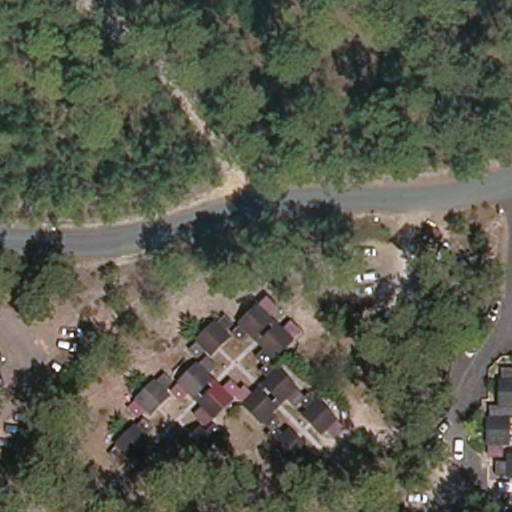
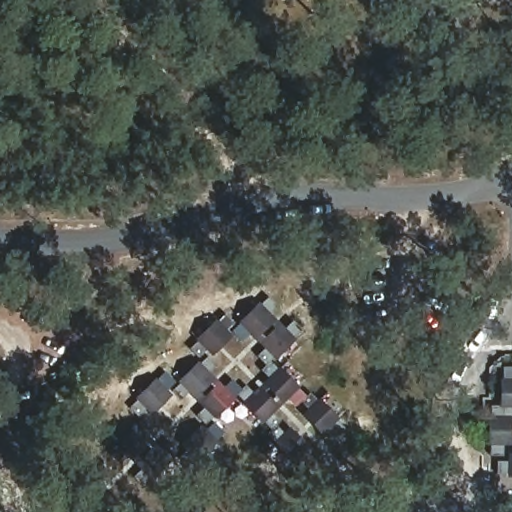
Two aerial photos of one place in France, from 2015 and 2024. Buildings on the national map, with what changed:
unchanged [(286,302),(277,311),(281,315),(262,334),(257,329),(249,338),(239,328),(277,293),(286,302)]
unchanged [(233,321),(224,330),(229,335),(210,354),(205,349),(195,358),(186,349),(223,312),(233,321)]
unchanged [(314,330),(278,364),(269,354),(276,347),(272,343),(290,325),(295,329),(304,320),(314,330)]
unchanged [(216,366),(208,374),(214,379),(194,398),(188,392),(179,402),(171,393),(208,358),(216,366)]
unchanged [(310,402),(302,410),(295,403),(290,407),(273,389),(277,383),(270,375),(278,367),(310,402)]
unchanged [(170,380),(161,388),(167,394),(149,411),(143,407),(131,418),(123,408),(161,371),(170,380)]
unchanged [(511,412),(511,422),(506,422),(506,445),(499,445),(499,457),(486,457),(487,407),(499,407),(499,371),(511,371),(511,385),(512,385),(512,412),(511,412)]
unchanged [(229,393),(237,384),(247,394),(209,429),(199,420),(208,411),(205,407),(223,388),(229,393)]
unchanged [(262,399),(268,393),(285,412),(279,417),(286,424),(277,434),(246,402),(256,392),(262,399)]
unchanged [(362,435),(354,443),(346,434),(342,439),(326,421),(330,416),(323,408),(330,401),(362,435)]
unchanged [(149,427),(141,435),(146,440),(126,459),(121,455),(111,464),(104,455),(142,419),(149,427)]
unchanged [(216,443),(201,458),(184,444),(202,429),(216,443)]
unchanged [(297,448),(300,444),(317,462),(313,467),(321,474),(312,483),(280,449),(289,439),(297,448)]
unchanged [(180,456),(144,492),(134,483),(142,474),(137,469),(156,449),(162,454),(171,446),(180,456)]
unchanged [(492,474),(493,461),(503,461),(503,456),(512,456),(512,474),(492,474)]

